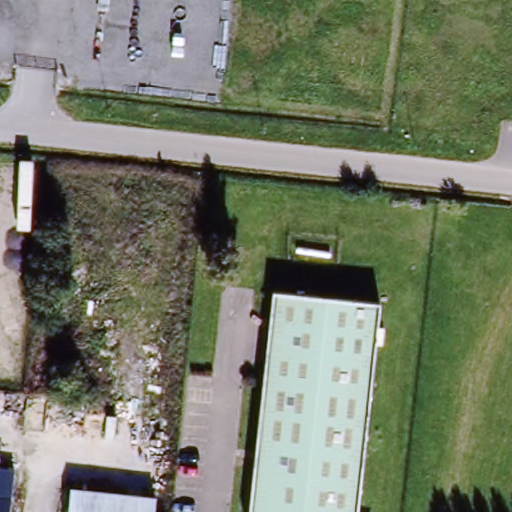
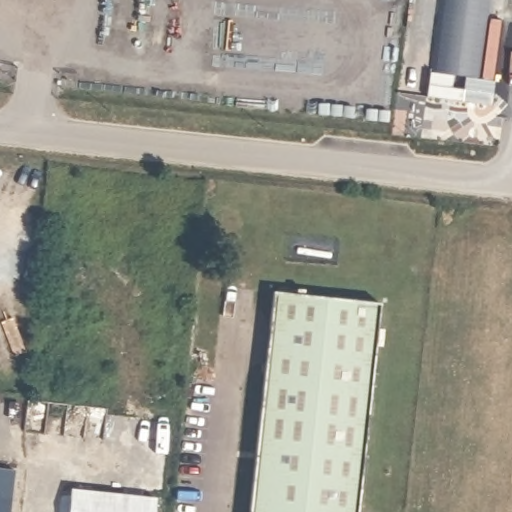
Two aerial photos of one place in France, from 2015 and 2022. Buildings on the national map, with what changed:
new [(489,17),(501,19),(491,81),(496,82),(492,104),(426,96),(427,70),(432,71),(439,0),(490,0),(489,17)]
unchanged [(385,312),(358,512),(247,512),(279,296),(385,312)]
unchanged [(10,512),(0,512),(0,472),(15,474),(10,512)]
unchanged [(153,506),(152,512),(69,512),(71,496),(153,506)]

